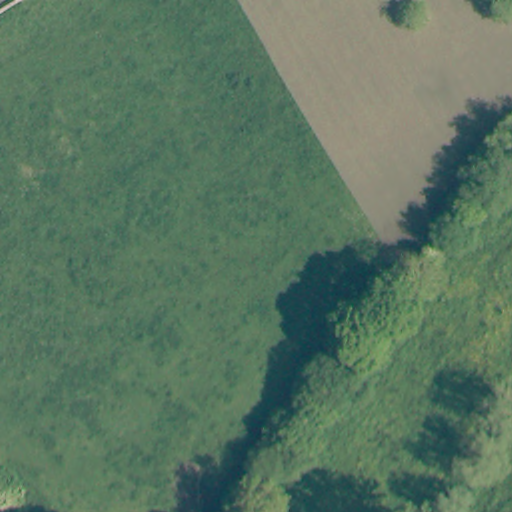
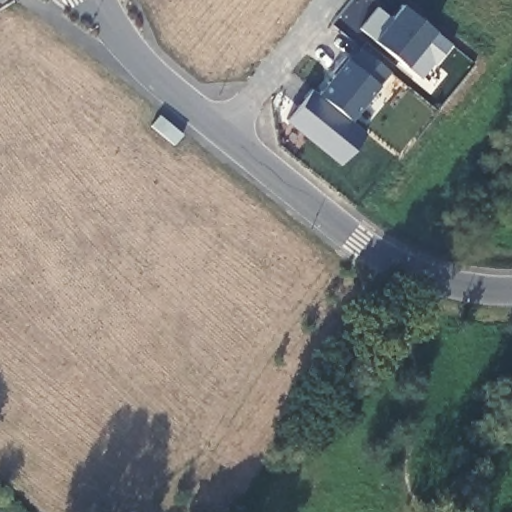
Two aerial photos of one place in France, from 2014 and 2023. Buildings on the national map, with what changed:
new [(450,42),(435,62),(432,60),(418,76),(373,38),(373,37),(360,27),(378,5),(391,16),(402,2),(450,42)]
new [(365,130),(340,161),(286,117),(311,86),(365,130)]

